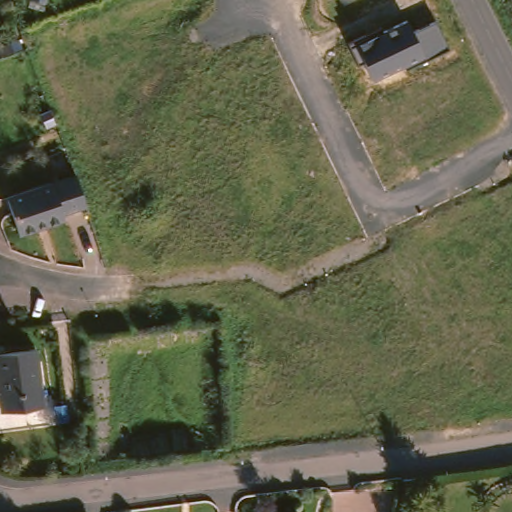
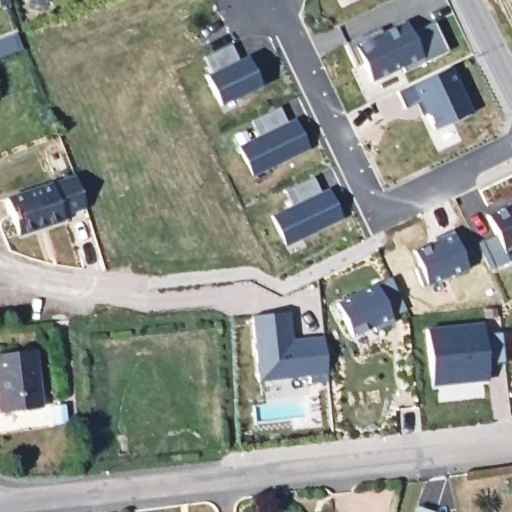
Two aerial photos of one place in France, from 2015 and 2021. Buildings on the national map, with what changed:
unchanged [(405,68),(371,82),(361,63),(357,65),(347,44),(375,30),(377,35),(406,22),(411,35),(435,23),(448,51),(405,70),(405,68)]
new [(220,107),(205,75),(212,72),(205,59),(231,43),(240,61),(247,58),(260,87),(220,107)]
new [(434,131),(427,115),(423,119),(415,103),(405,108),(397,93),(451,67),(471,112),(434,131)]
new [(238,144),(259,135),(254,119),(280,106),(288,121),(295,118),(310,149),(254,176),(238,144)]
new [(285,248),(270,216),(292,205),(287,191),(313,177),(321,191),(329,187),(343,219),(285,248)]
unchanged [(82,209),(64,217),(65,221),(21,237),(8,202),(71,178),(82,209)]
new [(489,214),(512,203),(512,247),(505,250),(510,264),(491,272),(477,244),(497,233),(489,214)]
new [(440,243),(438,238),(455,231),(472,268),(429,288),(421,271),(425,269),(417,254),(440,243)]
new [(396,291),(407,312),(393,319),(395,324),(376,333),(374,328),(352,338),(337,305),(391,280),(396,291)]
new [(310,383),(310,377),(258,383),(252,316),(290,313),(292,338),(325,334),(328,381),(310,383)]
new [(486,324),(487,334),(505,332),(508,362),(490,363),(491,380),(435,385),(430,330),(486,324)]
unchanged [(31,347),(39,406),(0,410),(0,350),(31,347)]
unchanged [(55,418),(52,400),(65,399),(67,417),(55,418)]
new [(415,512),(416,507),(430,512),(415,512)]

